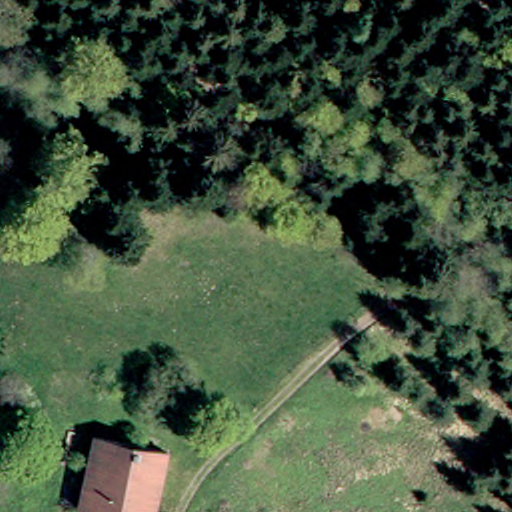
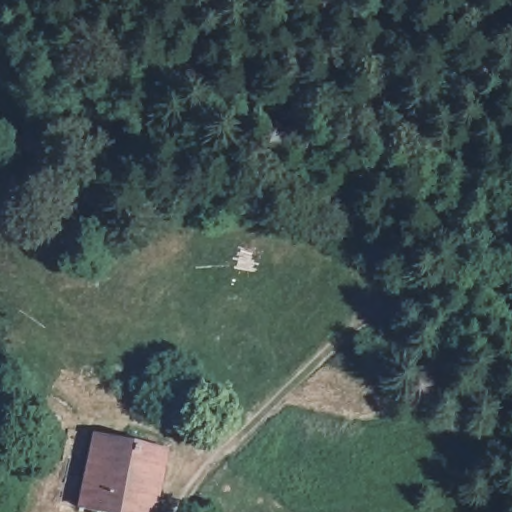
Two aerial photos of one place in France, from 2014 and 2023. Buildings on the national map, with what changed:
unchanged [(146,512),(135,512),(73,498),(90,429),(91,425),(162,442),(146,512)]

